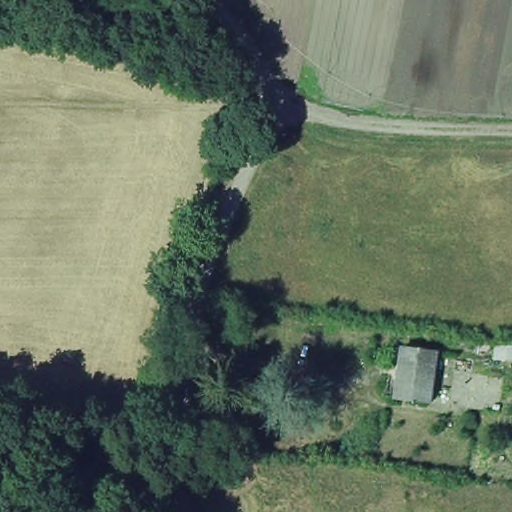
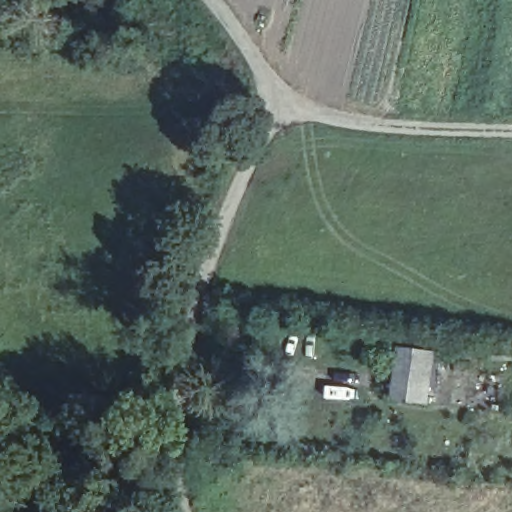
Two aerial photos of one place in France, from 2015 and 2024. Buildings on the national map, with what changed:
unchanged [(429,407),(399,402),(384,399),(391,351),(406,353),(437,358),(429,407)]

